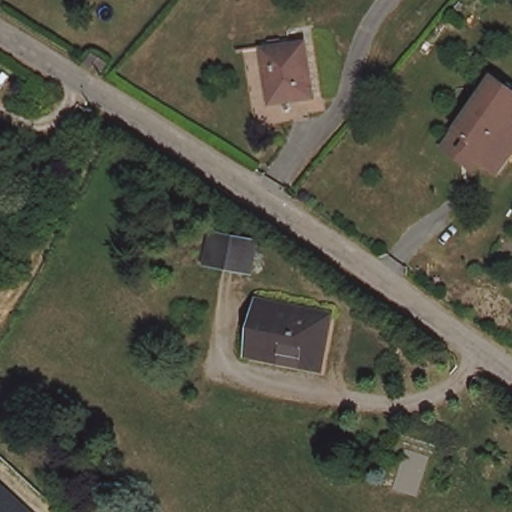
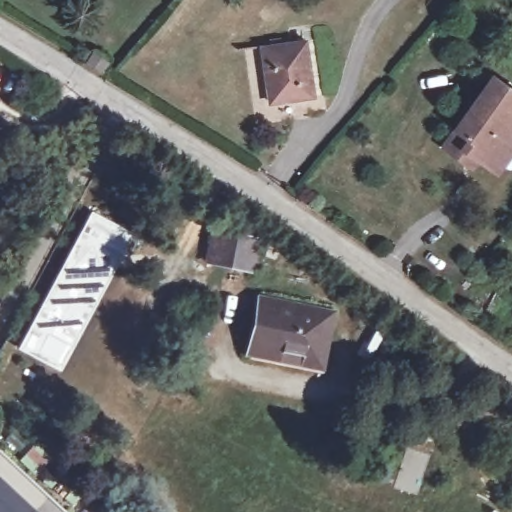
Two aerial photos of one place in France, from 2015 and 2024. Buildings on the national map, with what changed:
unchanged [(108,37),(114,31),(127,41),(122,46),(117,51),(105,41),(108,37)]
unchanged [(263,51),(307,46),(315,97),(272,104),(263,51)]
unchanged [(464,162),(445,149),(494,77),(512,90),(512,149),(495,174),(478,162),(474,168),(464,162)]
new [(90,211),(133,233),(59,373),(15,350),(90,211)]
unchanged [(262,239),(257,269),(212,262),(217,234),(218,232),(262,239)]
unchanged [(272,359),(250,356),(259,301),(334,312),(327,358),(325,367),(272,359)]
unchanged [(32,512),(0,512),(0,480),(32,512)]

